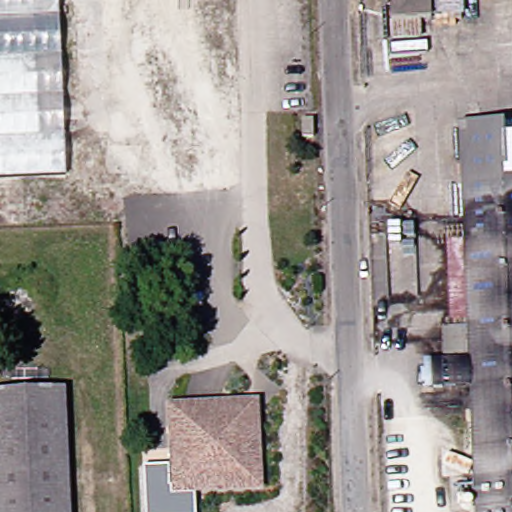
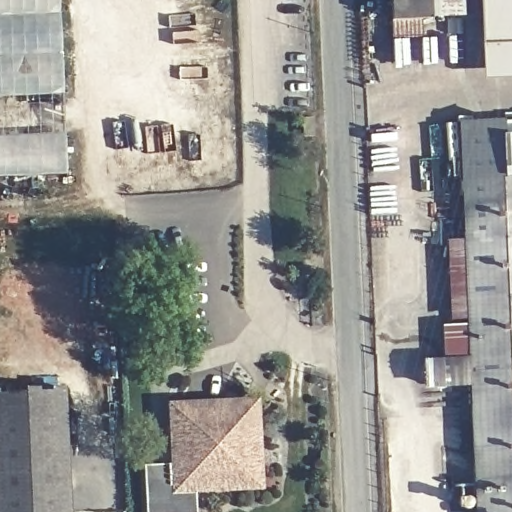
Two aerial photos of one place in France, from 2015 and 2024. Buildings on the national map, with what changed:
unchanged [(0,175),(0,0),(60,0),(66,173),(0,175)]
unchanged [(435,21),(435,37),(395,39),(395,21),(393,0),(466,0),(468,19),(435,21)]
new [(481,0),(512,0),(512,79),(485,80),(481,0)]
unchanged [(430,384),(429,359),(446,359),(445,326),(470,325),(470,313),(453,313),(450,243),(466,242),(462,121),(505,120),(506,133),(512,132),(512,512),(479,512),(473,382),(430,384)]
unchanged [(65,388),(72,512),(0,512),(0,391),(65,388)]
unchanged [(245,401),(258,413),(262,485),(196,488),(198,512),(147,512),(145,465),(175,463),(172,404),(245,401)]

